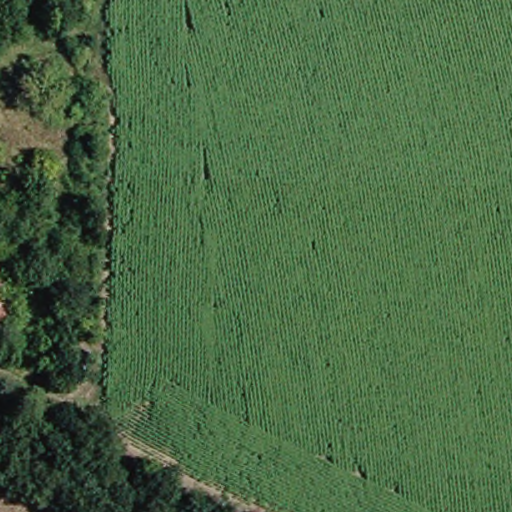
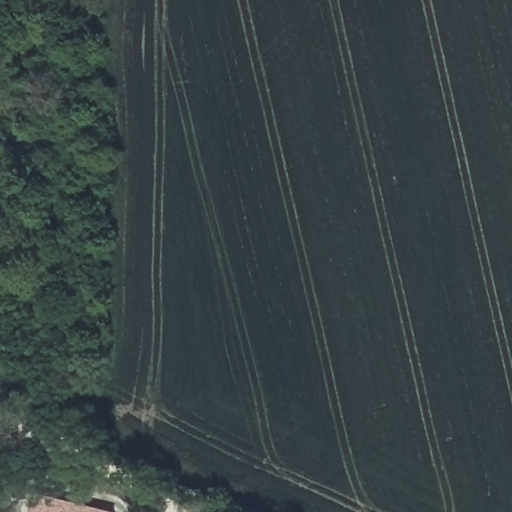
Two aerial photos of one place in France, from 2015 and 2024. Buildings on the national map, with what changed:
unchanged [(16,280),(0,343),(0,276),(16,280)]
new [(117,512),(35,512),(39,493),(117,512)]

